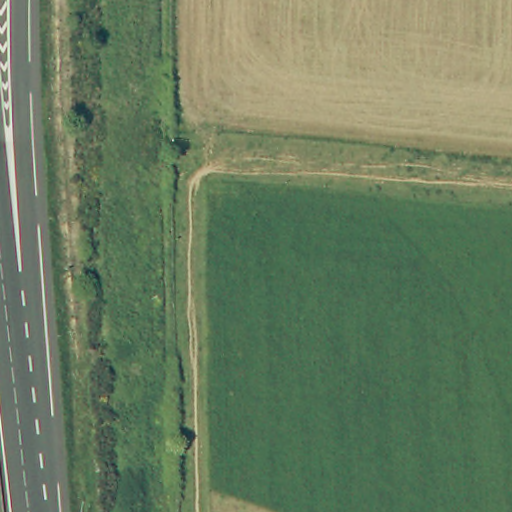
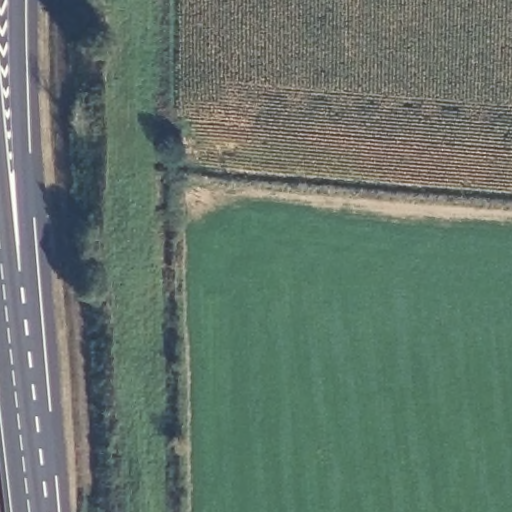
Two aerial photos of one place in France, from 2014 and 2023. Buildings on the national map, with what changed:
[]

